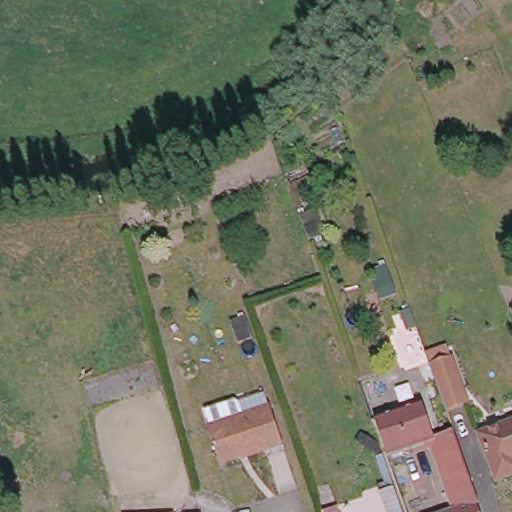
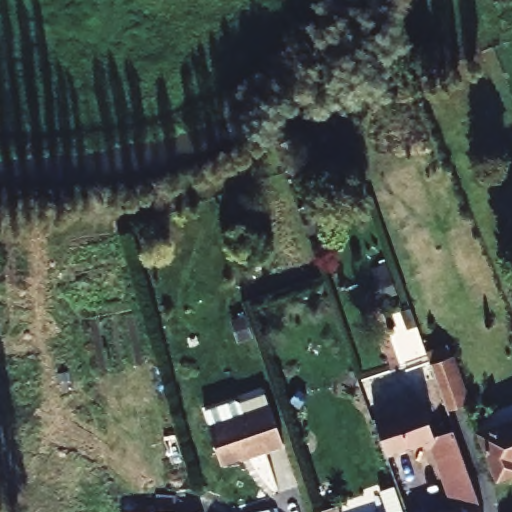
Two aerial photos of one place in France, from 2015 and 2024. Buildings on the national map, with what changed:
unchanged [(450,346),(470,403),(449,410),(444,397),(440,386),(427,353),(450,346)]
unchanged [(437,436),(438,438),(390,453),(379,419),(426,402),(437,436)]
unchanged [(207,430),(202,414),(230,404),(234,406),(240,419),(267,410),(281,448),(245,461),(245,458),(220,467),(206,430),(207,430)]
unchanged [(512,470),(512,475),(492,481),(477,436),(512,423),(512,463),(510,464),(512,470)]
unchanged [(456,430),(457,429),(483,502),(480,503),(484,512),(448,512),(459,508),(440,459),(446,457),(438,438),(437,436),(453,431),(456,430)]
unchanged [(382,490),(397,484),(407,512),(390,512),(382,490)]
unchanged [(342,504),(345,512),(328,512),(327,510),(342,504)]

